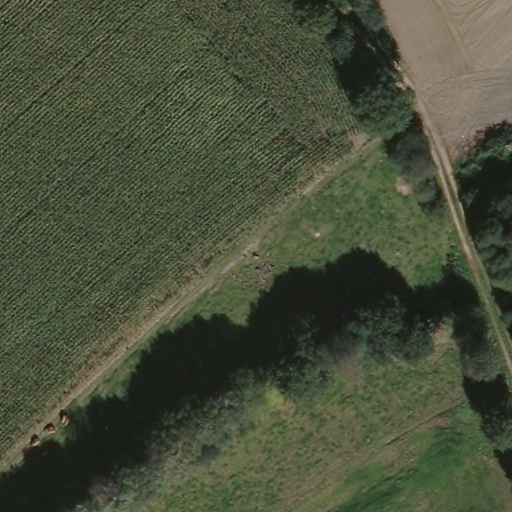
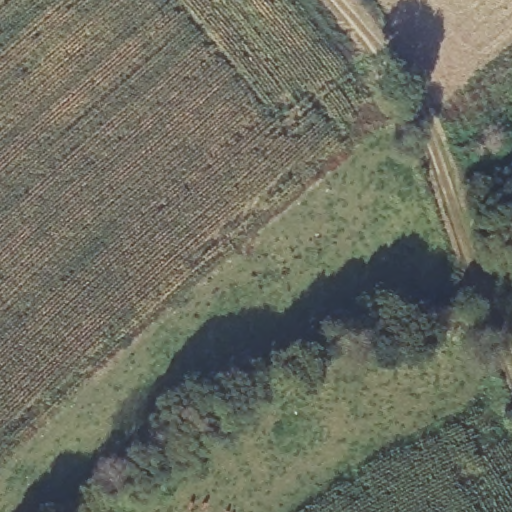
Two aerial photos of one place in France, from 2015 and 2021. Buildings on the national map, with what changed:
[]

